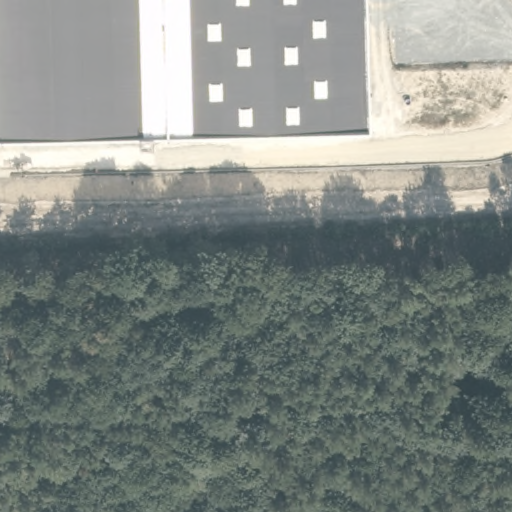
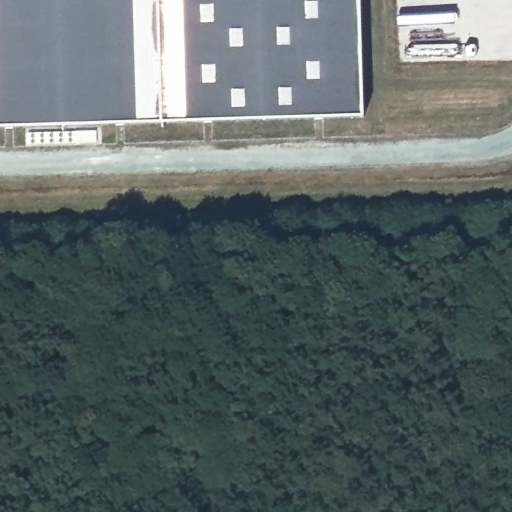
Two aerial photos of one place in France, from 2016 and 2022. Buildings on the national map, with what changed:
unchanged [(365,114),(0,125),(0,0),(361,0),(365,114)]

